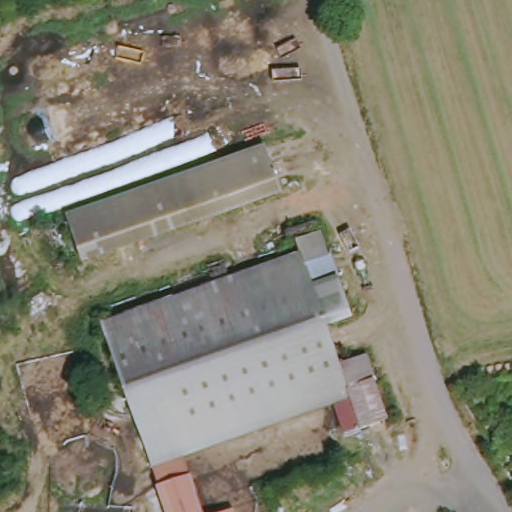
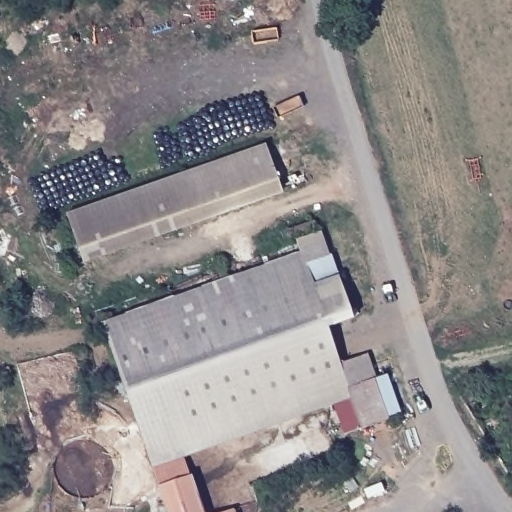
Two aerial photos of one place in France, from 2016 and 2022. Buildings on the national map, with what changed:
unchanged [(86,263),(68,214),(267,150),(286,194),(86,263)]
unchanged [(292,250),(285,233),(308,224),(345,309),(320,318),(292,250)]
unchanged [(350,391),(189,456),(157,470),(99,332),(292,250),(320,318),(337,357),(350,391)]
unchanged [(361,347),(387,409),(364,420),(350,391),(337,357),(361,347)]
unchanged [(211,512),(176,512),(157,470),(189,456),(211,512)]
unchanged [(241,505),(244,512),(226,512),(241,505)]

